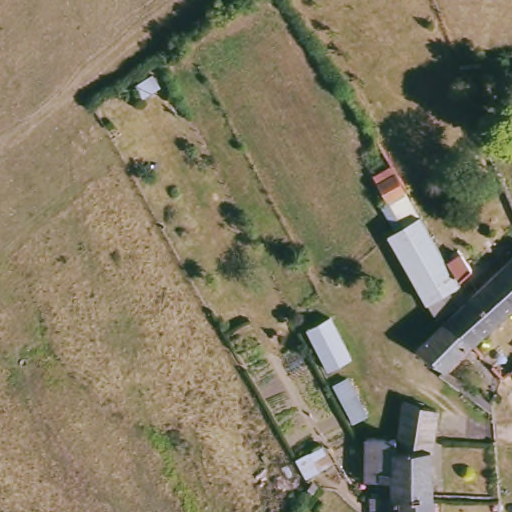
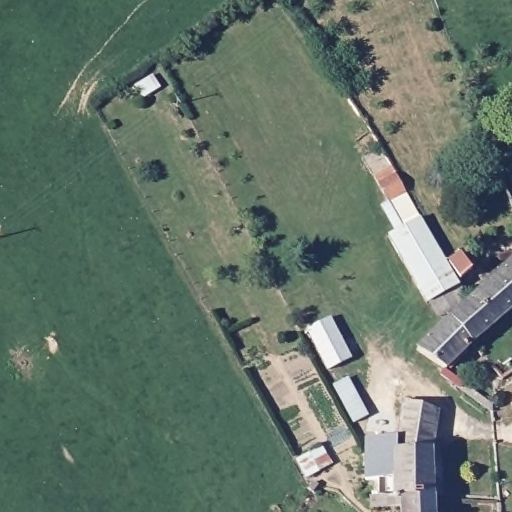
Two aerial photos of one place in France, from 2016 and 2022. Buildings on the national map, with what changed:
unchanged [(495,62),(496,79),(466,80),(461,65),(495,62)]
unchanged [(417,191),(398,202),(387,185),(384,176),(402,166),(417,191)]
unchanged [(441,317),(432,302),(393,237),(431,216),(437,227),(458,262),(472,253),(482,270),(468,278),(461,283),(469,297),(441,317)]
unchanged [(457,310),(477,294),(486,287),(512,266),(512,316),(491,335),(483,342),(457,311),(457,310)]
unchanged [(457,311),(483,342),(456,369),(429,350),(457,311)]
unchanged [(338,320),(357,359),(336,370),(316,330),(338,320)]
unchanged [(456,369),(504,403),(504,405),(504,410),(452,377),(456,369)]
unchanged [(337,384),(356,373),(381,419),(361,428),(337,384)]
unchanged [(425,496),(384,495),(383,477),(371,476),(371,447),(371,435),(400,436),(399,445),(402,445),(409,400),(443,409),(438,453),(439,496),(425,496)]
unchanged [(311,488),(318,481),(321,485),(316,492),(311,488)]
unchanged [(440,512),(407,512),(407,506),(379,505),(379,495),(384,495),(425,496),(439,496),(440,512)]

